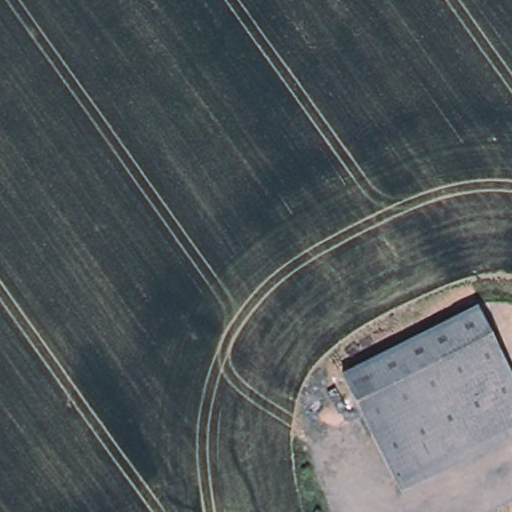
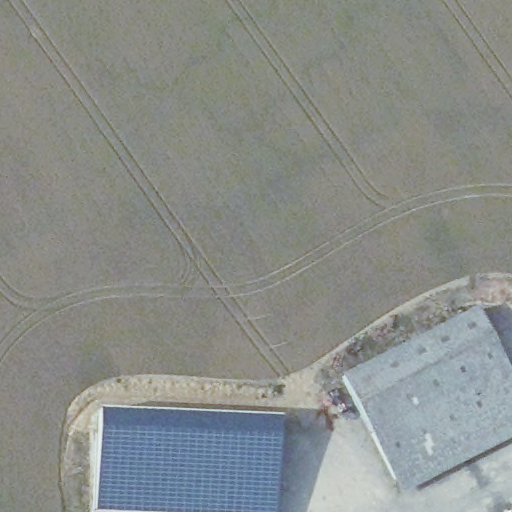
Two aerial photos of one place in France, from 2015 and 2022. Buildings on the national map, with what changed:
unchanged [(512,427),(397,485),(344,381),(479,312),(512,379),(512,427)]
new [(275,413),(271,512),(198,512),(90,507),(94,405),(275,413)]

